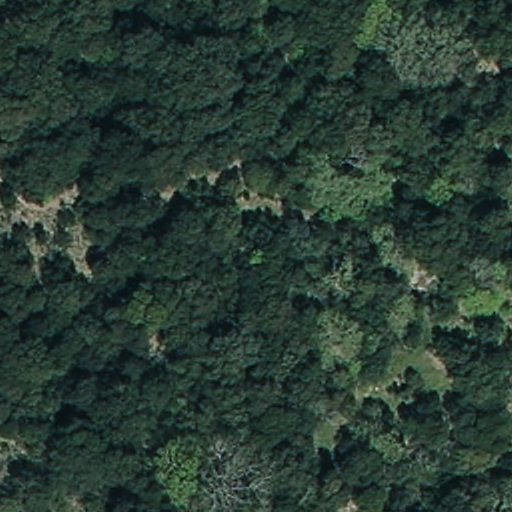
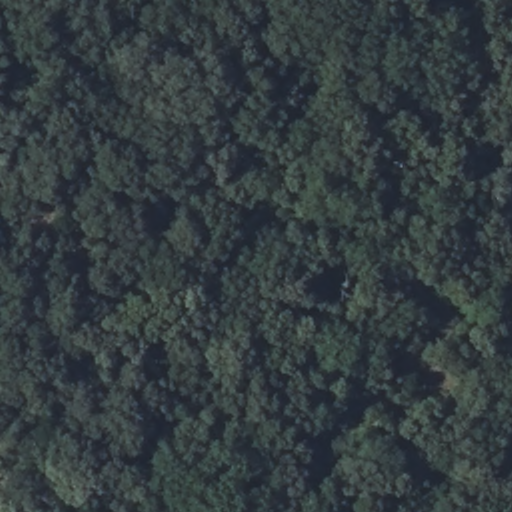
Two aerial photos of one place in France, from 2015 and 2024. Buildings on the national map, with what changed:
[]

